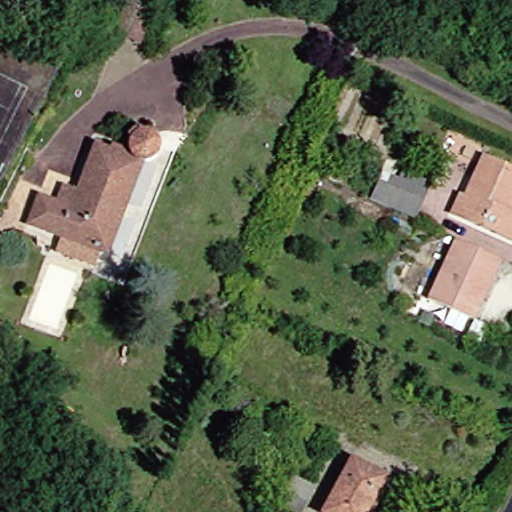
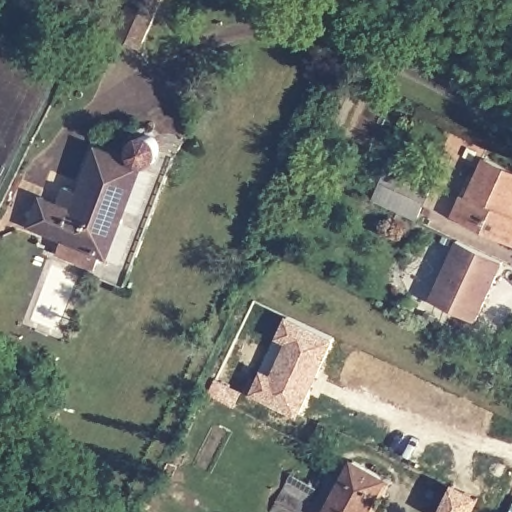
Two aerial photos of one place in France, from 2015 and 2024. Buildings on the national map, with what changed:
unchanged [(141,46),(115,34),(131,0),(161,0),(141,46)]
unchanged [(79,196),(97,150),(137,165),(134,162),(131,156),(132,149),(136,144),(142,140),(148,140),(155,143),(159,148),(160,155),(159,160),(157,163),(152,167),(145,169),(109,261),(29,230),(41,200),(59,207),(65,191),(79,196)]
unchanged [(461,195),(465,197),(484,157),(512,170),(512,241),(453,213),(461,195)]
unchanged [(431,188),(418,217),(392,204),(378,198),(385,182),(399,189),(405,176),(431,188)]
unchanged [(478,320),(432,298),(460,239),(488,252),(505,260),(478,320)]
new [(300,416),(251,393),(262,370),(271,374),(289,336),(282,333),(288,316),(336,338),(300,416)]
unchanged [(326,512),(354,459),(387,477),(380,489),(385,491),(373,512),(326,512)]
unchanged [(301,512),(277,512),(273,510),(293,472),(316,485),(301,512)]

